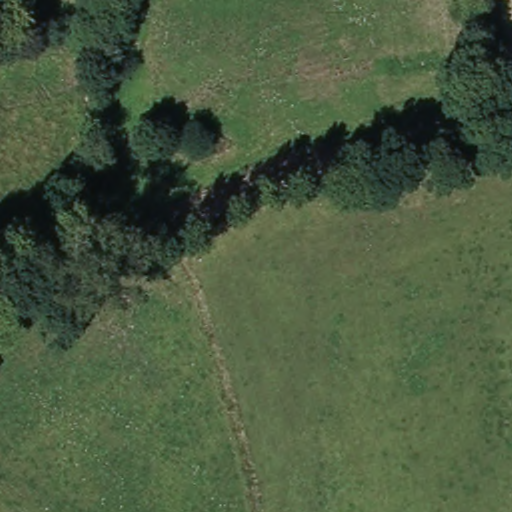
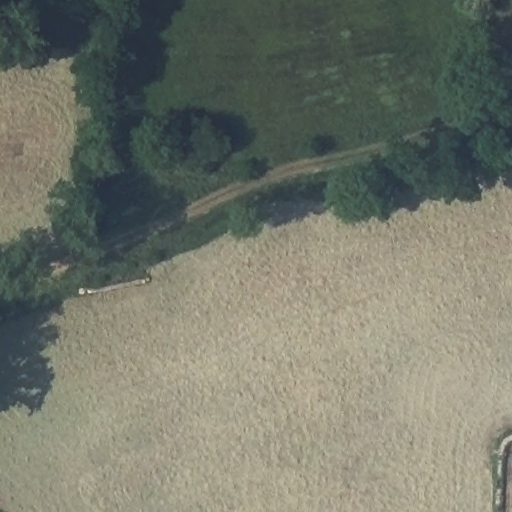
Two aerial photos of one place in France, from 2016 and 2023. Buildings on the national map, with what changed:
[]

